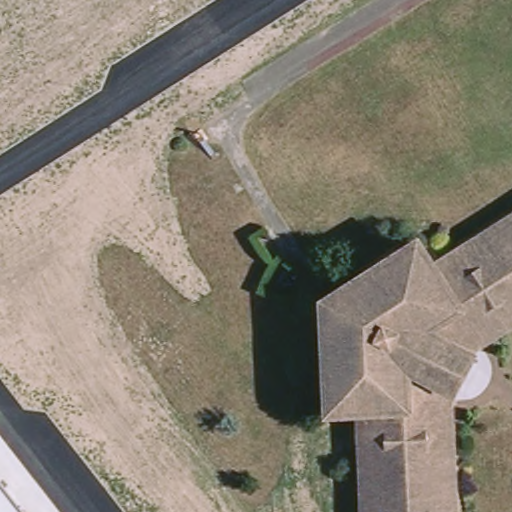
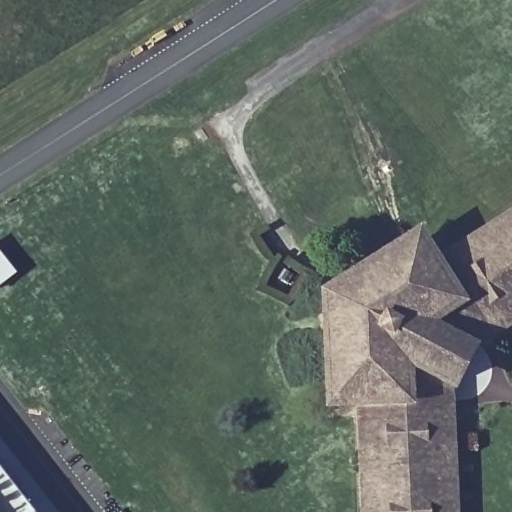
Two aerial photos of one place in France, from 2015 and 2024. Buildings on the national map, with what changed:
unchanged [(340,408),(341,298),(425,247),(438,269),(512,224),(512,321),(490,335),(452,390),(450,512),(372,512),(372,408),(340,408)]
new [(0,288),(0,254),(17,275),(0,288)]
unchanged [(28,512),(0,512),(0,477),(28,512)]

